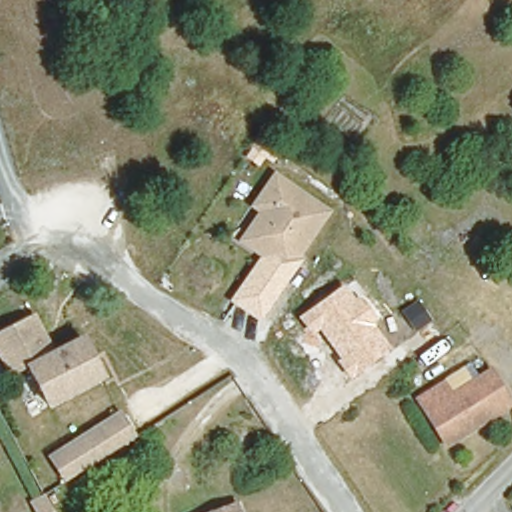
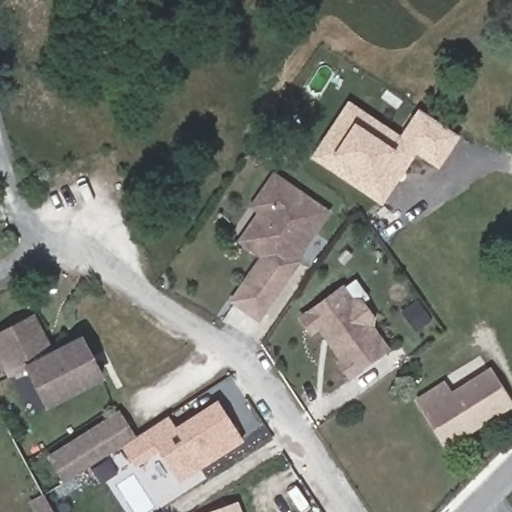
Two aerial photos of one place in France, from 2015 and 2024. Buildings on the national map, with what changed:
new [(438,169),(416,155),(382,205),(311,157),(349,100),(400,135),(418,109),(459,136),(438,169)]
unchanged [(258,213),(250,208),(274,173),(333,212),(289,278),(270,265),(261,259),(237,243),(258,213)]
unchanged [(261,259),(270,265),(289,278),(262,323),(229,302),(261,259)]
unchanged [(374,328),(389,349),(347,378),(334,360),(336,357),(316,329),(308,336),(297,318),(345,283),(354,296),(358,293),(377,321),(374,328)]
unchanged [(36,310),(51,343),(81,331),(107,375),(42,408),(22,370),(7,378),(0,362),(0,328),(36,310)]
unchanged [(447,395),(470,383),(474,389),(498,373),(512,395),(512,400),(455,436),(447,422),(435,428),(416,398),(441,384),(447,395)]
new [(132,437),(168,415),(175,426),(218,400),(244,441),(179,484),(159,453),(135,469),(121,443),(132,437)]
unchanged [(106,451),(61,475),(48,451),(119,412),(132,437),(106,451)]
unchanged [(202,506),(204,508),(232,497),(238,512),(187,512),(202,506)]

